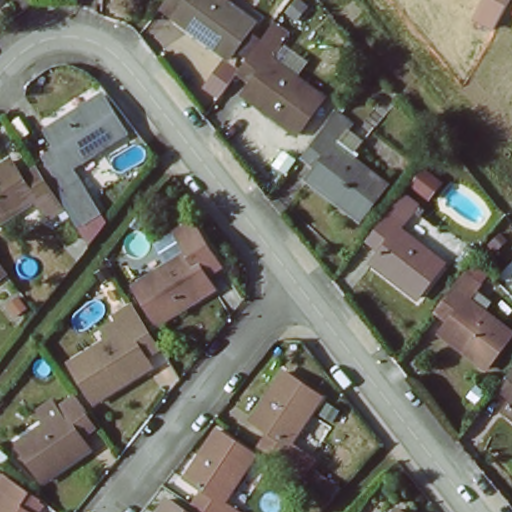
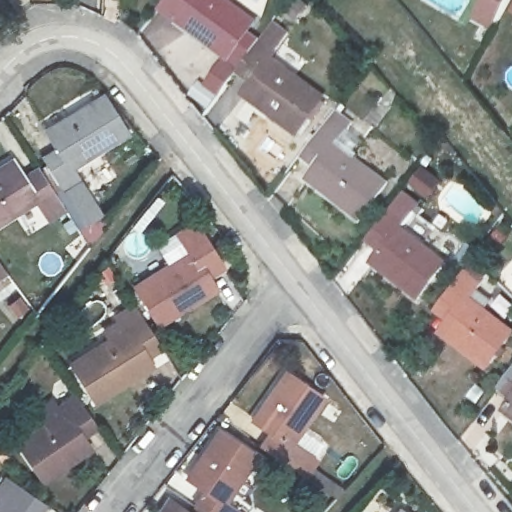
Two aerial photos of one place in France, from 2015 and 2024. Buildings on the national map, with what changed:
unchanged [(229,59),(174,17),(185,1),(183,0),(230,0),(257,20),(229,59)]
unchanged [(494,32),(472,21),(484,0),(510,0),(494,32)]
unchanged [(299,136),(247,99),(258,82),(246,72),(269,38),(282,48),(272,63),(325,101),(299,136)]
unchanged [(63,190),(40,154),(53,147),(43,129),(100,93),(124,131),(69,168),(77,181),(63,190)]
unchanged [(359,219),(304,178),(316,163),(304,153),(329,119),(341,129),(334,137),(387,178),(359,219)]
unchanged [(23,175),(35,166),(58,200),(45,209),(35,196),(0,221),(0,165),(11,157),(23,175)]
unchanged [(415,301),(370,266),(383,250),(372,242),(395,211),(406,220),(398,231),(442,264),(415,301)]
unchanged [(157,324),(134,287),(189,250),(182,238),(197,228),(219,263),(205,273),(215,289),(157,324)]
unchanged [(480,365),(436,332),(449,316),(437,307),(460,276),(472,284),(464,296),(507,329),(480,365)]
unchanged [(96,406),(71,368),(125,331),(118,318),(130,308),(152,344),(140,353),(150,369),(96,406)]
unchanged [(500,410),(510,394),(499,385),(512,367),(512,419),(500,410)]
unchanged [(295,465),(262,442),(271,429),(254,418),(285,371),(322,395),(292,443),(304,451),(295,465)]
unchanged [(43,484),(17,449),(61,415),(54,406),(65,398),(87,429),(76,438),(87,453),(43,484)]
unchanged [(228,512),(200,493),(207,482),(190,471),(221,424),(258,448),(229,495),(242,504),(237,512),(228,512)]
unchanged [(0,496),(0,476),(32,496),(24,510),(26,512),(0,512),(0,499),(2,497),(0,496)]
unchanged [(187,512),(151,512),(162,495),(187,512)]
unchanged [(398,512),(394,512),(395,510),(398,512)]

